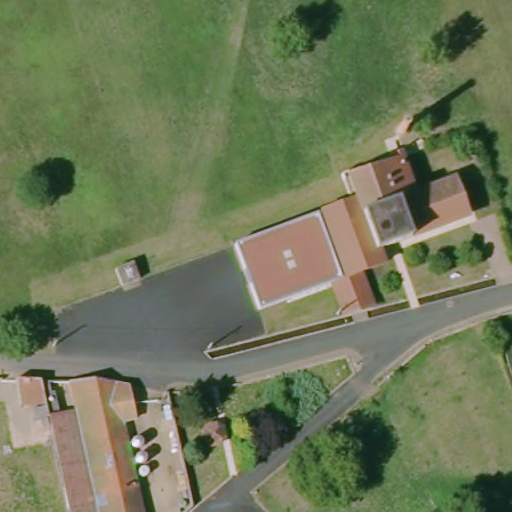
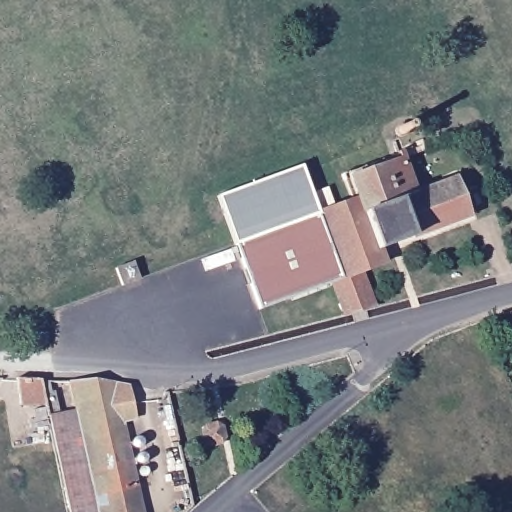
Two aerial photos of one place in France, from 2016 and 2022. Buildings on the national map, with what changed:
unchanged [(302,216),(348,199),(339,173),(395,152),(398,159),(409,193),(447,178),(463,215),(374,248),(379,263),(357,271),(369,306),(339,315),(328,282),(302,216)]
new [(218,201),(301,173),(314,212),(302,216),(231,241),(218,201)]
unchanged [(254,307),(231,241),(302,216),(328,282),(254,307)]
unchanged [(119,288),(113,271),(129,264),(136,282),(119,288)]
unchanged [(126,381),(134,414),(119,417),(139,512),(65,512),(45,413),(73,407),(67,377),(109,378),(126,381)]
unchanged [(218,439),(215,446),(212,449),(206,451),(198,450),(194,447),(191,441),(191,434),(194,428),(198,425),(204,423),(208,424),(213,427),(217,432),(218,438),(218,439)]

